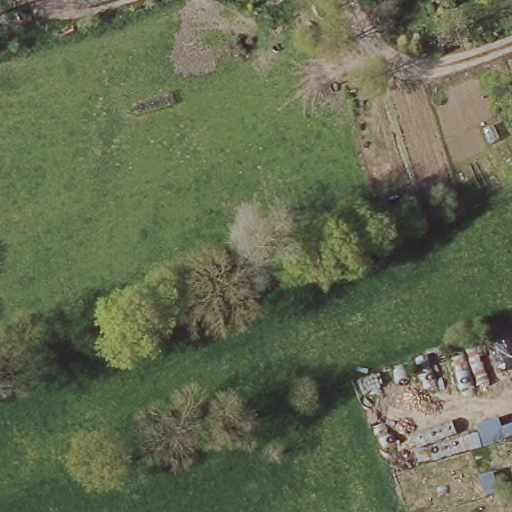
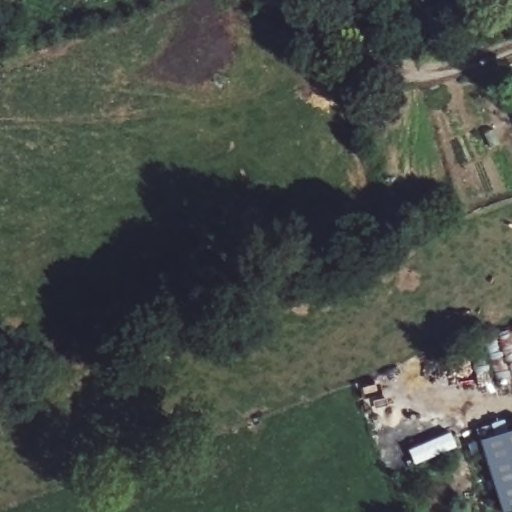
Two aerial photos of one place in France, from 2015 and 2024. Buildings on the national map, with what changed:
new [(512,428),(512,507),(504,509),(482,438),(512,428)]
new [(480,439),(484,449),(472,454),(468,443),(480,439)]

